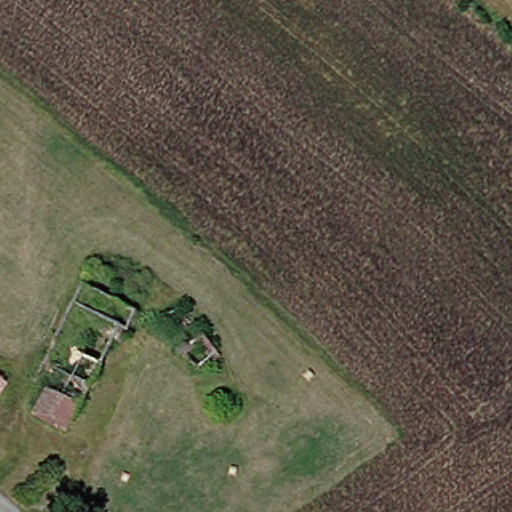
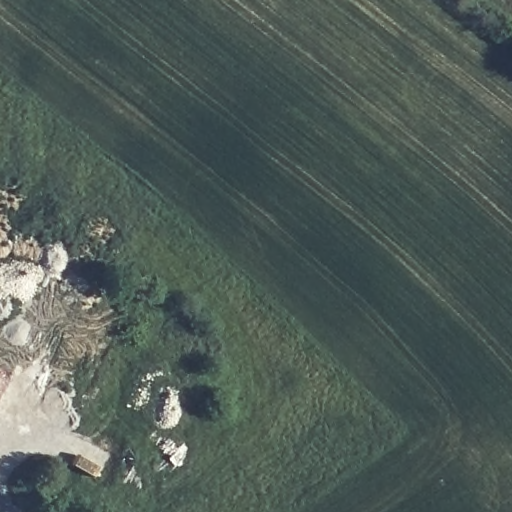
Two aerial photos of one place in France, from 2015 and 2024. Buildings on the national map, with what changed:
unchanged [(207,359),(162,310),(180,287),(197,303),(187,313),(221,345),(207,359)]
unchanged [(50,344),(100,367),(68,434),(29,417),(42,391),(31,384),(50,344)]
unchanged [(206,418),(220,394),(235,402),(220,426),(206,418)]

